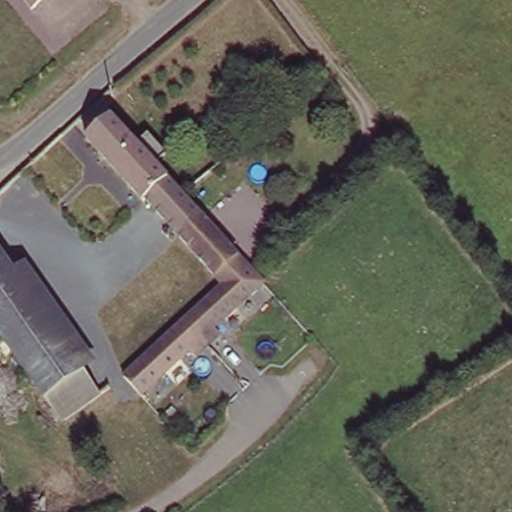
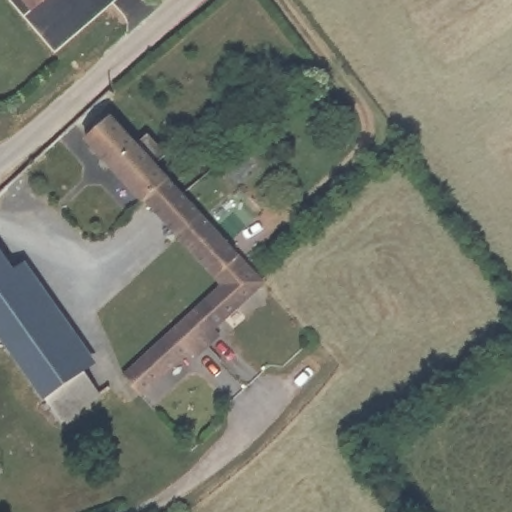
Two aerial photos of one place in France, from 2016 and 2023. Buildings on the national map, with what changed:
unchanged [(36,2),(34,0),(40,0),(36,2)]
unchanged [(135,384),(134,386),(117,370),(116,368),(214,278),(81,127),(105,106),(130,134),(142,124),(160,145),(149,155),(173,183),(256,273),(252,277),(208,317),(135,384)]
unchanged [(2,219),(99,363),(83,373),(0,247),(0,221),(2,219)]
unchanged [(83,373),(45,400),(0,333),(0,247),(83,373)]
unchanged [(208,317),(223,333),(150,401),(135,384),(208,317)]
unchanged [(99,397),(62,423),(45,400),(83,373),(99,397)]

